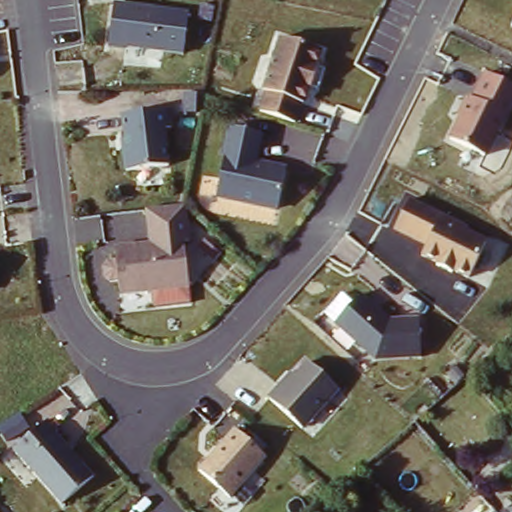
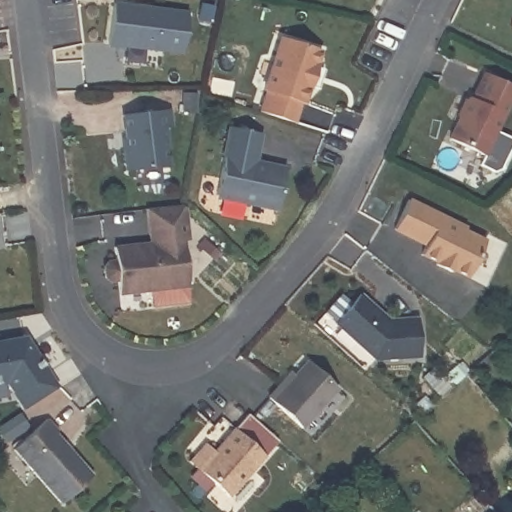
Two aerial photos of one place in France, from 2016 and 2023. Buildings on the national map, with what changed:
unchanged [(188,55),(111,47),(116,0),(126,0),(192,11),(188,55)]
unchanged [(509,25),(512,19),(512,26),(509,25)]
unchanged [(321,50),(304,126),(262,115),(282,37),(321,50)]
unchanged [(512,84),(512,109),(489,157),(450,137),(486,70),(512,84)]
unchanged [(176,109),(180,125),(171,128),(175,162),(127,171),(121,111),(176,109)]
unchanged [(265,132),(261,160),(291,167),(281,211),(219,196),(234,126),(265,132)]
unchanged [(492,240),(474,282),(422,260),(427,249),(395,232),(412,195),(492,240)]
unchanged [(118,282),(106,283),(102,276),(102,265),(107,261),(115,260),(114,246),(149,243),(145,209),(187,206),(192,242),(184,242),(189,286),(119,296),(118,282)]
unchanged [(360,294),(388,320),(420,318),(420,357),(371,357),(332,323),(360,294)]
new [(57,388),(23,410),(6,382),(0,383),(0,341),(25,337),(57,388)]
unchanged [(341,388),(304,426),(272,397),(311,360),(341,388)]
unchanged [(101,473),(67,504),(14,448),(47,420),(101,473)]
unchanged [(268,454),(231,496),(199,463),(236,425),(268,454)]

